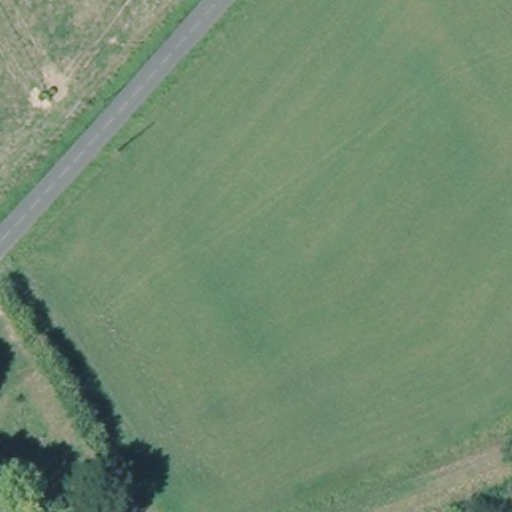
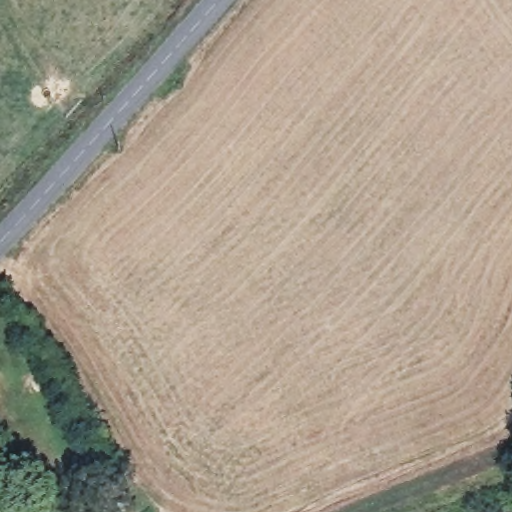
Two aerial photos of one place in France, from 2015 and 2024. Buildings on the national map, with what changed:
[]

